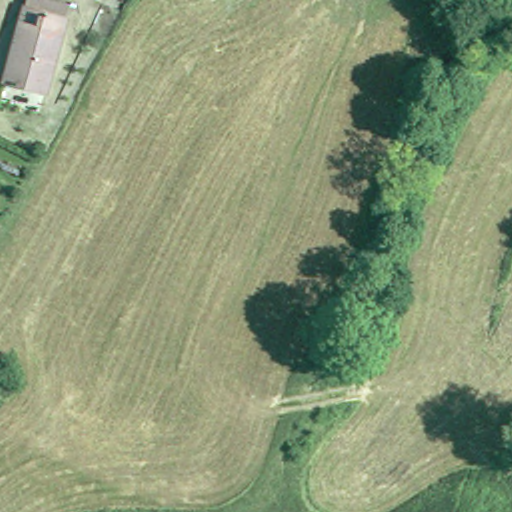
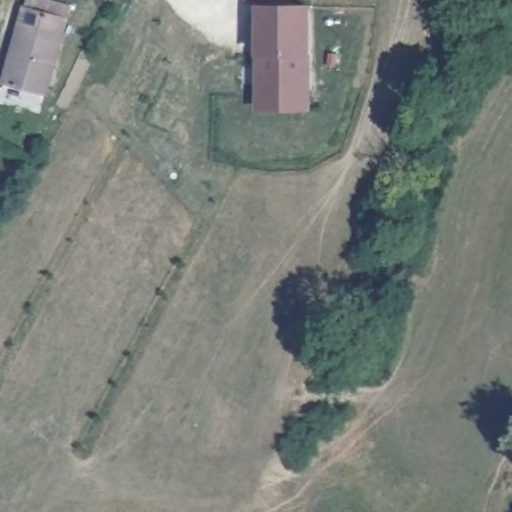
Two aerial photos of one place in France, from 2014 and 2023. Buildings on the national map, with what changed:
unchanged [(0,96),(28,1),(28,0),(69,0),(72,1),(68,16),(40,111),(0,98),(0,96)]
new [(251,0),(295,0),(295,3),(310,3),(311,54),(311,110),(256,110),(256,55),(256,4),(251,0)]

